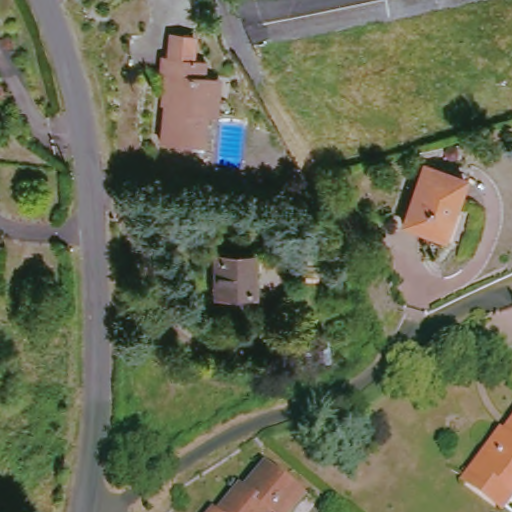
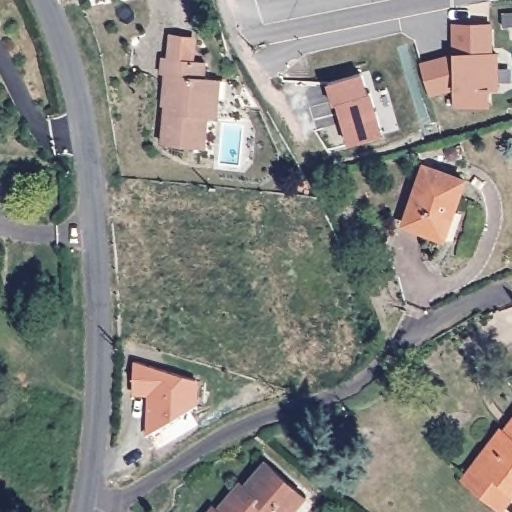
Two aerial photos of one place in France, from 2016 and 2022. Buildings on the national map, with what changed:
new [(454,55),(453,25),(491,24),(492,63),(497,63),(498,88),(488,88),(488,106),(454,106),(454,89),(429,95),(420,65),(444,58),(454,55)]
unchanged [(214,114),(205,115),(201,147),(158,144),(161,109),(154,107),(160,56),(168,57),(170,42),(196,45),(196,62),(203,62),(203,78),(219,80),(214,114)]
new [(361,73),(367,93),(370,92),(382,134),(351,143),(339,102),(335,103),(329,82),(361,73)]
unchanged [(404,227),(422,168),(462,180),(444,241),(404,227)]
unchanged [(223,290),(215,290),(216,255),(246,256),(246,290),(254,291),(254,307),(222,307),(223,290)]
new [(133,362),(196,380),(196,406),(148,435),(148,395),(133,394),(133,362)]
unchanged [(495,503),(461,471),(502,427),(507,432),(512,427),(512,486),(495,503)]
unchanged [(241,484),(246,488),(263,467),(301,497),(290,512),(278,512),(271,507),(268,512),(219,512),(241,484)]
unchanged [(206,508),(211,512),(203,512),(206,508)]

